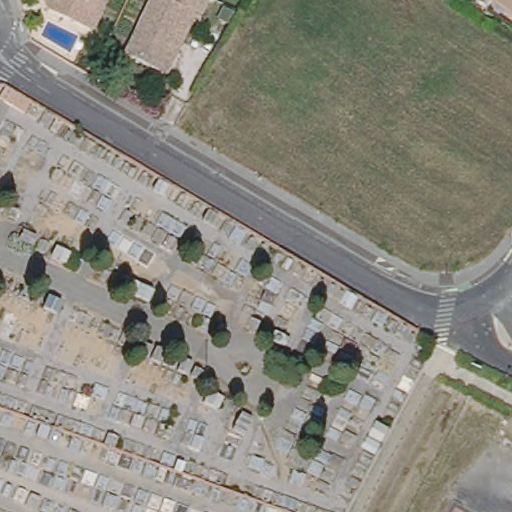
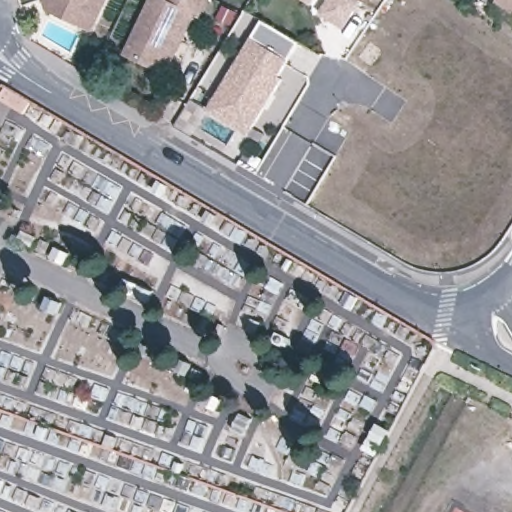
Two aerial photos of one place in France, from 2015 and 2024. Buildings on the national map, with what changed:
unchanged [(97,28),(54,7),(50,0),(110,0),(97,28)]
unchanged [(173,73),(131,52),(155,0),(214,0),(207,15),(180,76),(173,73)]
new [(312,3),(306,0),(314,0),(312,3)]
new [(320,13),(329,0),(363,0),(345,28),(320,13)]
unchanged [(512,1),(511,0),(512,0),(512,1)]
new [(262,18),(299,40),(278,75),(282,77),(249,133),(208,108),(262,18)]
unchanged [(32,100),(25,111),(1,96),(8,85),(32,100)]

